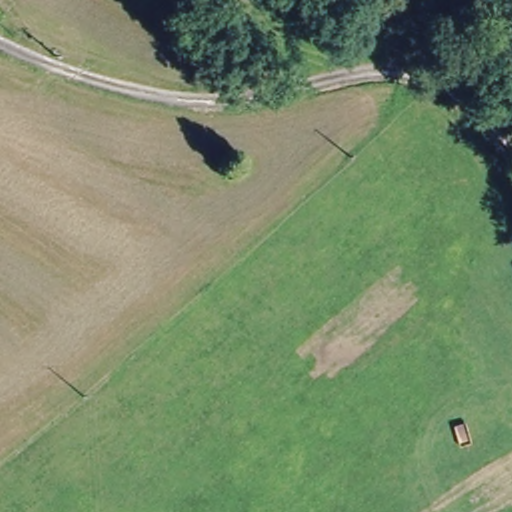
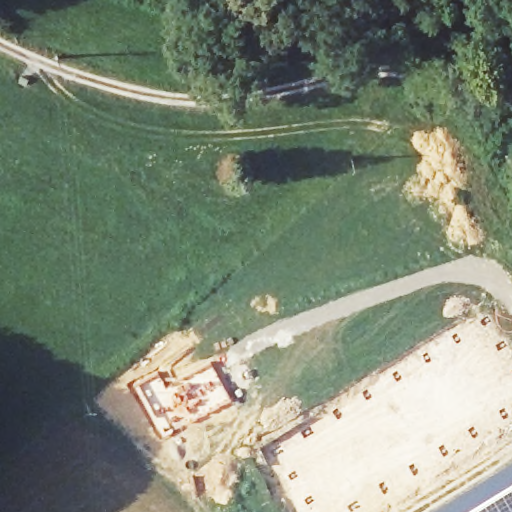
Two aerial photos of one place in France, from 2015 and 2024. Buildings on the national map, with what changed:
new [(512,468),(512,512),(441,512),(512,468)]

